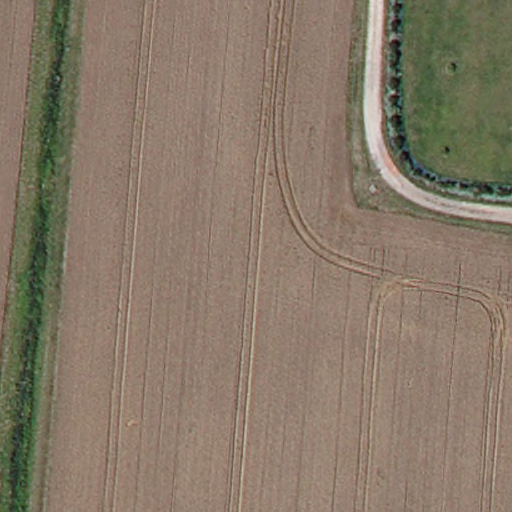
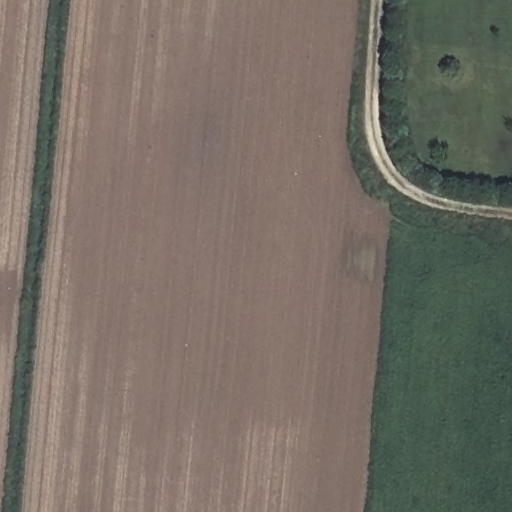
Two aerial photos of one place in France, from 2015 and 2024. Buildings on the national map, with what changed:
[]

